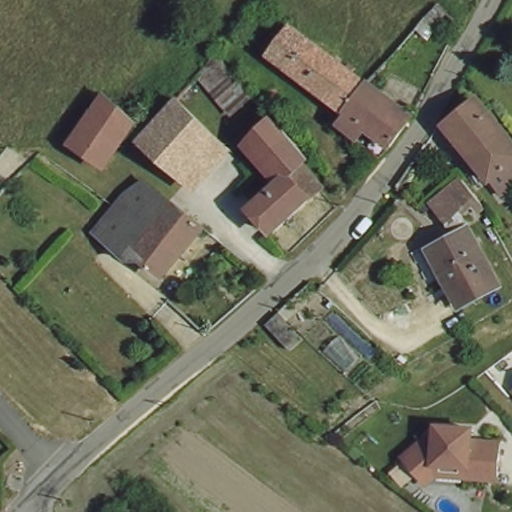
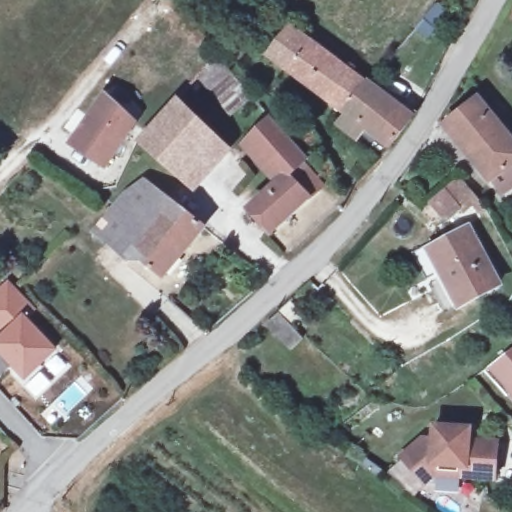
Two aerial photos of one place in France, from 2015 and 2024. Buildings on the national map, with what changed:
unchanged [(354,135),(336,122),(345,111),(268,51),(290,21),(357,69),(370,78),(409,106),(390,140),(364,121),(357,130),(354,135)]
unchanged [(255,89),(235,108),(199,74),(220,50),(255,89)]
unchanged [(137,126),(105,169),(68,145),(99,101),(137,126)]
unchanged [(512,178),(503,185),(454,127),(484,102),(512,140),(512,178)]
unchanged [(153,138),(177,110),(225,147),(188,188),(143,152),(144,149),(153,138)]
unchanged [(320,188),(269,235),(245,208),(276,178),(245,140),(273,115),(307,153),(298,162),(320,188)]
unchanged [(441,199),(467,178),(481,193),(455,213),(441,199)]
unchanged [(164,270),(137,246),(127,256),(104,236),(94,228),(148,180),(205,226),(164,270)]
unchanged [(498,282),(462,302),(434,250),(458,238),(469,230),(498,282)]
new [(33,305),(22,316),(52,345),(25,373),(0,349),(0,337),(5,332),(0,327),(0,289),(8,280),(33,305)]
unchanged [(310,327),(294,339),(273,318),(291,301),(310,327)]
unchanged [(512,387),(509,384),(512,382),(512,387)]
unchanged [(464,422),(463,434),(491,436),(488,472),(429,469),(418,477),(396,450),(417,433),(427,434),(428,420),(464,422)]

